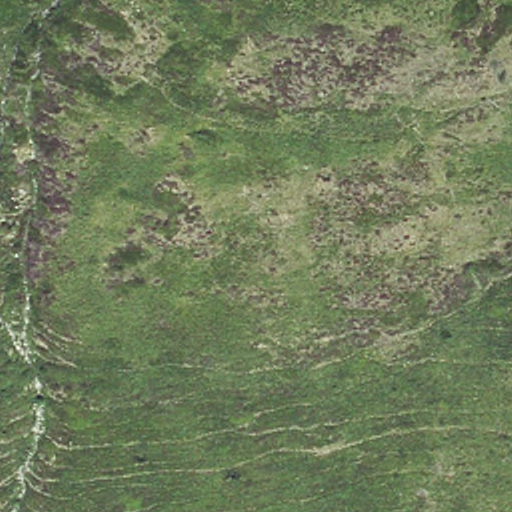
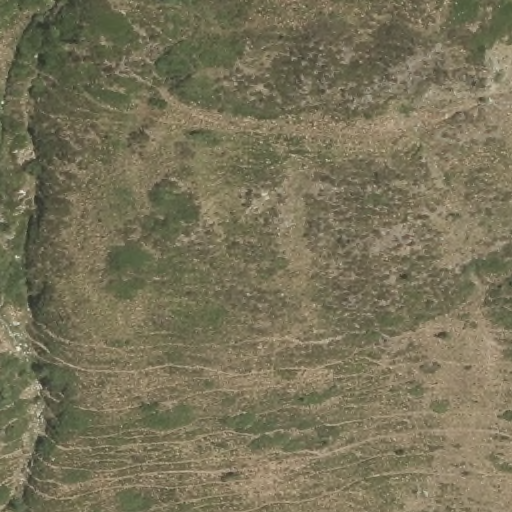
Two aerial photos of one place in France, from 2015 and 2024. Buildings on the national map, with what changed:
[]

